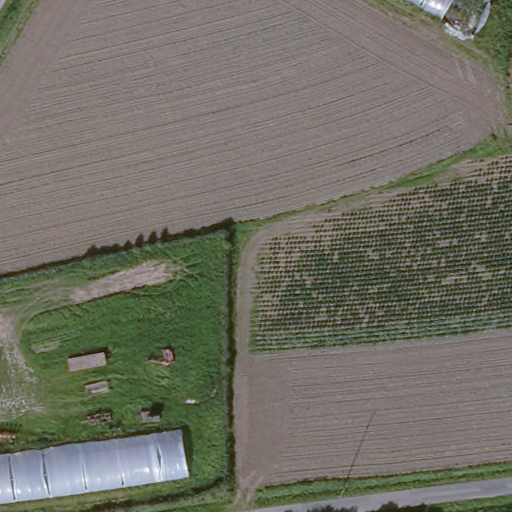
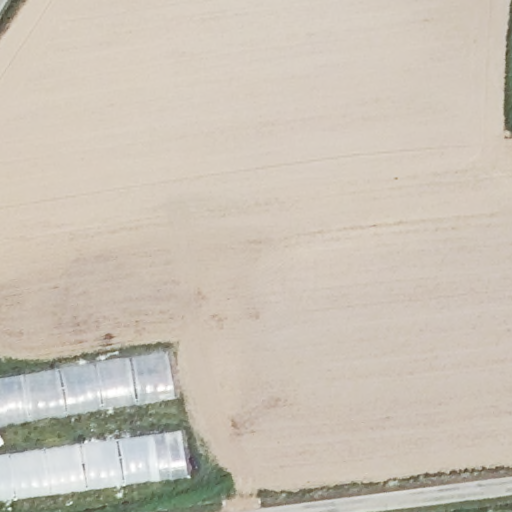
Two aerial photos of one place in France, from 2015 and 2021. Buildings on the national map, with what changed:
demolished [(473,39),(400,0),(490,0),(473,39)]
new [(174,395),(0,423),(0,377),(165,349),(174,395)]
unchanged [(181,429),(188,475),(0,501),(0,452),(181,429)]

